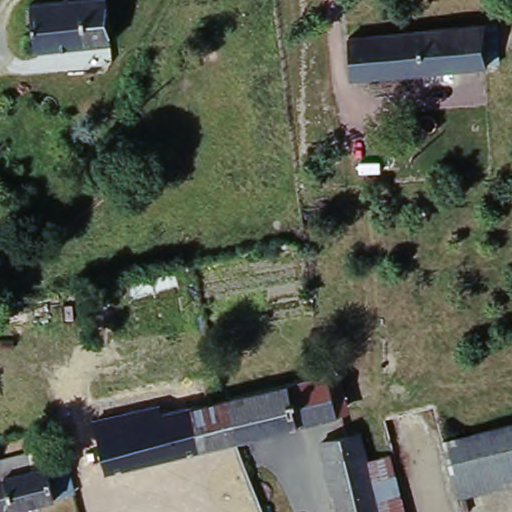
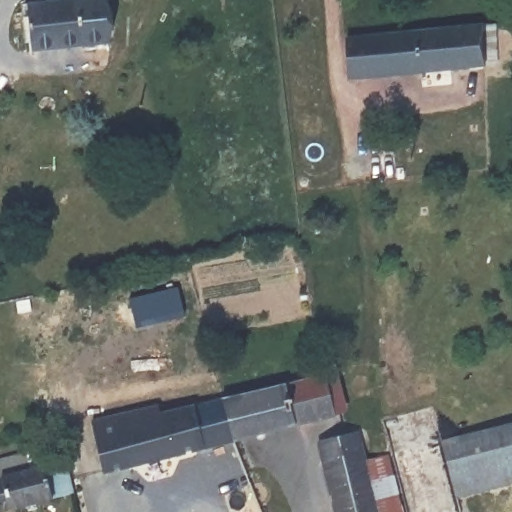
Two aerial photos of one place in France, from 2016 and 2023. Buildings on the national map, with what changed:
unchanged [(105,1),(109,49),(32,54),(29,10),(105,1)]
unchanged [(494,23),(497,61),(483,62),(484,67),(344,78),(340,38),(494,23)]
new [(185,317),(139,327),(132,299),(179,287),(185,317)]
unchanged [(200,453),(111,480),(90,424),(330,376),(342,413),(200,453)]
unchanged [(512,426),(512,482),(453,496),(440,445),(512,426)]
unchanged [(366,483),(390,478),(399,512),(330,512),(313,448),(355,438),(366,483)]
unchanged [(21,468),(34,464),(52,459),(60,492),(44,496),(0,506),(0,459),(18,454),(21,468)]

